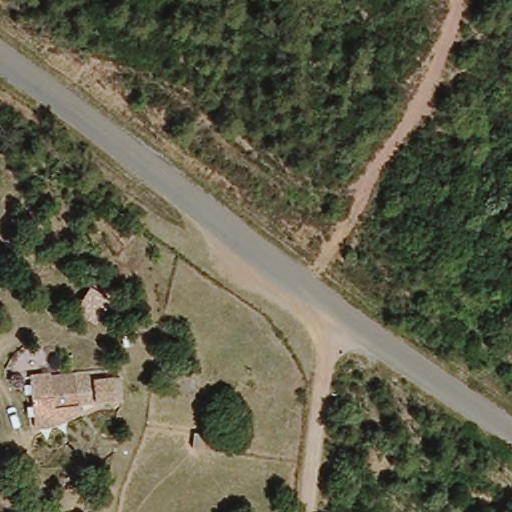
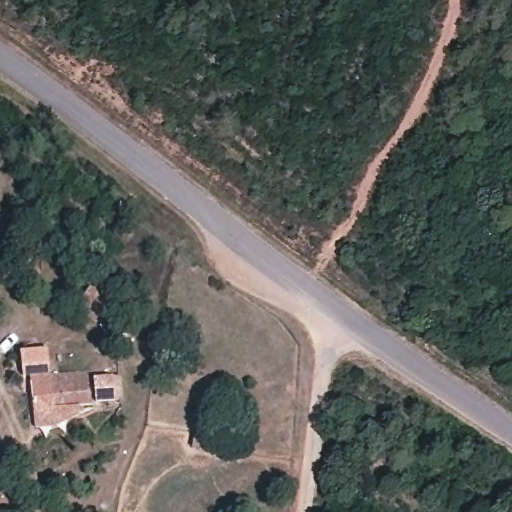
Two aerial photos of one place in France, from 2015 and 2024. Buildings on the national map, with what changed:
unchanged [(112,403),(53,405),(54,425),(33,427),(31,379),(111,379),(112,403)]

